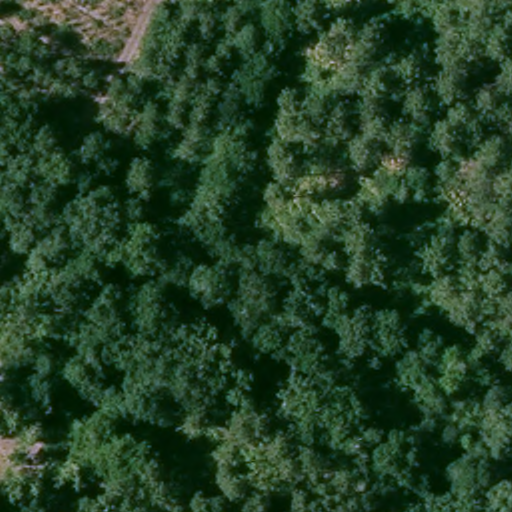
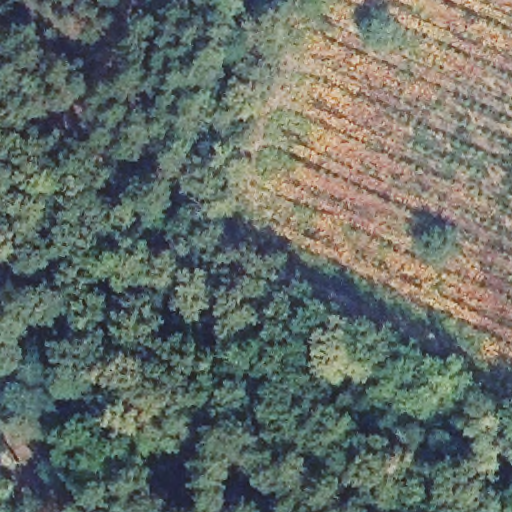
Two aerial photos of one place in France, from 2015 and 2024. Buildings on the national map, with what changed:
[]

